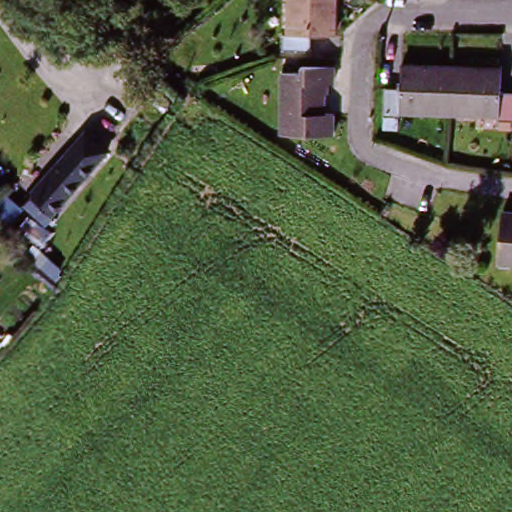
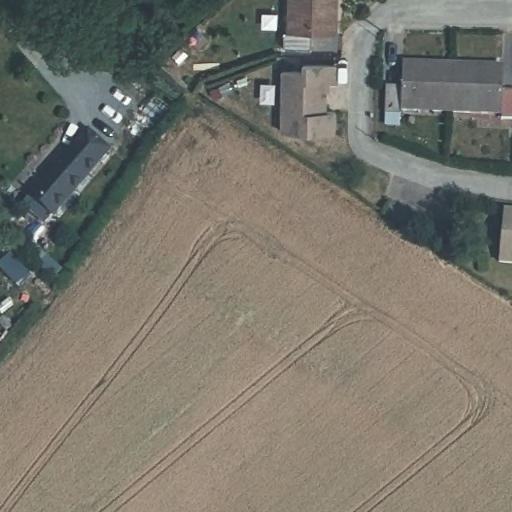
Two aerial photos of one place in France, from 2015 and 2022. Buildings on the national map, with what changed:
unchanged [(283,47),(283,30),(289,30),(289,0),(335,0),(335,31),(312,30),(312,48),(283,47)]
unchanged [(385,111),(386,85),(402,85),(402,61),(452,63),(450,110),(401,108),(401,111),(385,111)]
unchanged [(336,80),(325,80),(325,110),(334,110),(334,132),(282,131),(280,69),(301,70),(302,62),(335,63),(336,80)]
unchanged [(500,116),(501,111),(450,110),(452,63),(502,65),(502,89),(512,89),(512,116),(500,116)]
unchanged [(24,201),(30,194),(89,130),(109,149),(50,215),(44,221),(24,201)]
unchanged [(17,208),(0,227),(0,198),(2,196),(17,208)]
unchanged [(499,259),(505,209),(512,209),(512,260),(499,259)]

